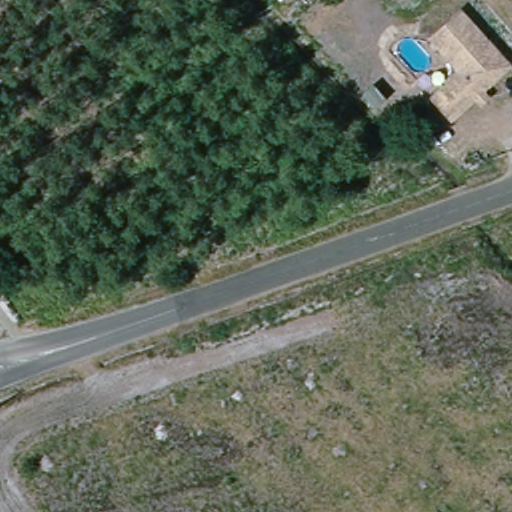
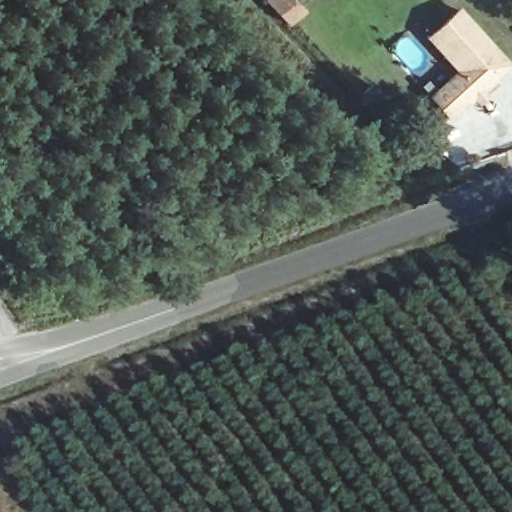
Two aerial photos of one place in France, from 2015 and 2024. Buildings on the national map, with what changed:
unchanged [(479,109),(474,101),(454,120),(434,100),(462,74),(432,41),(462,13),(510,66),(486,90),(491,98),(479,109)]

